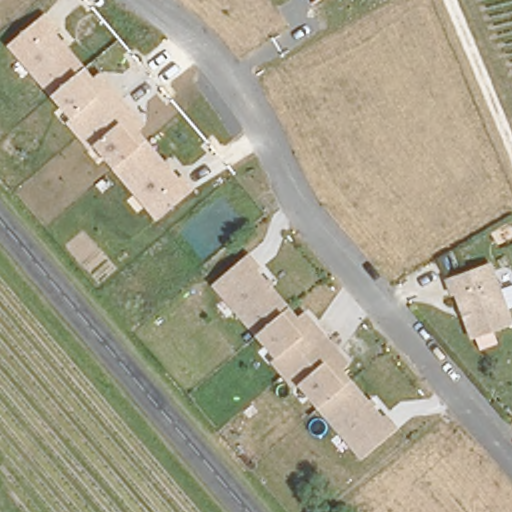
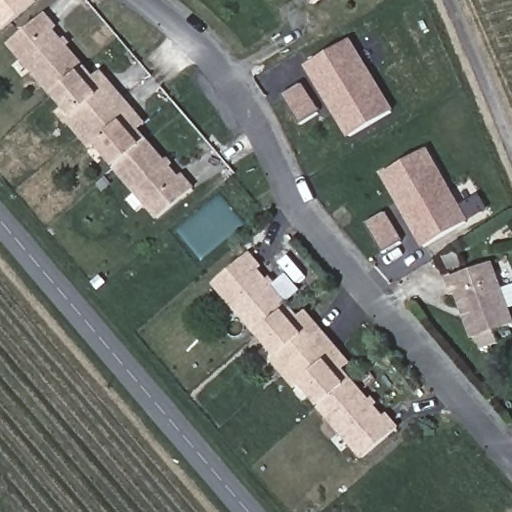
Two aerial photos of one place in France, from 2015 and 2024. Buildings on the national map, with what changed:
new [(0,11),(0,0),(13,0),(0,11)]
unchanged [(315,7),(310,0),(324,0),(315,7)]
unchanged [(46,15),(57,28),(53,31),(93,79),(100,73),(141,124),(134,130),(174,178),(177,175),(188,189),(153,217),(112,167),(113,166),(94,144),(89,147),(66,120),(71,116),(53,93),(52,94),(10,44),(46,15)]
new [(310,66),(351,42),(395,114),(353,138),(310,66)]
new [(285,98),(303,87),(321,117),(303,127),(285,98)]
new [(384,174),(425,149),(468,221),(427,246),(384,174)]
new [(370,227),(389,216),(407,246),(388,257),(370,227)]
unchanged [(318,407),(319,406),(300,383),(295,388),(271,360),(276,356),(256,333),(255,335),(212,285),(247,256),(259,270),(256,272),(297,320),(304,314),(347,363),(340,370),(382,417),(385,415),(396,427),(362,457),(318,407)]
unchanged [(454,296),(449,280),(492,265),(512,320),(512,327),(474,340),(458,295),(454,296)]

